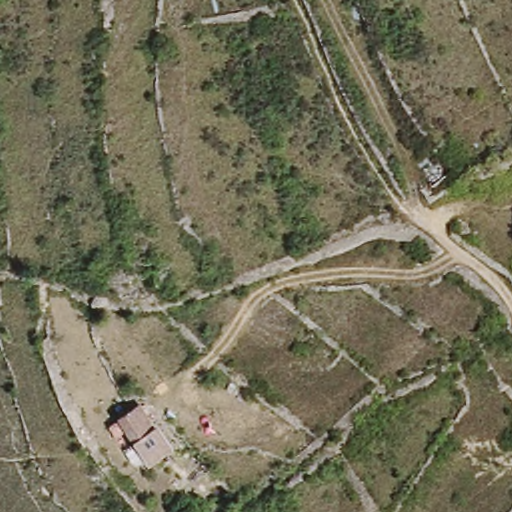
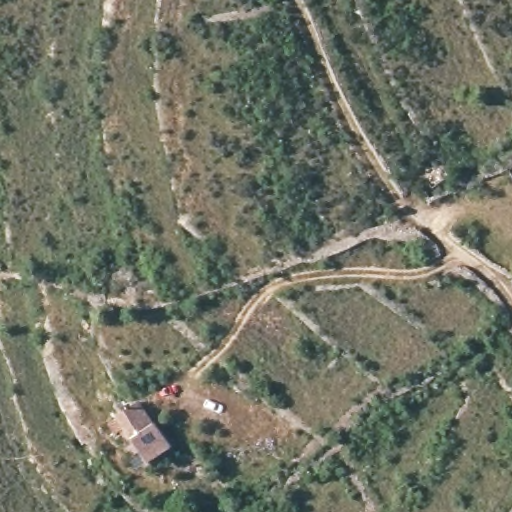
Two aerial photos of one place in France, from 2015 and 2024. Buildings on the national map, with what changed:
unchanged [(133,407),(145,425),(151,421),(167,446),(141,463),(113,420),(133,407)]

